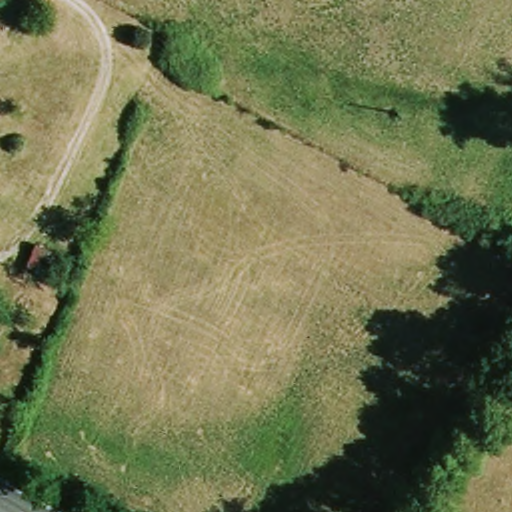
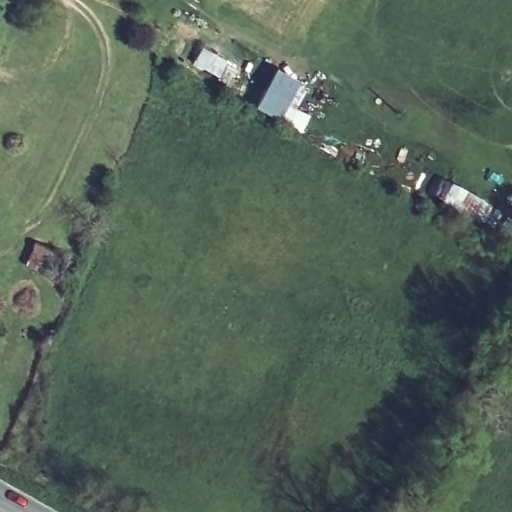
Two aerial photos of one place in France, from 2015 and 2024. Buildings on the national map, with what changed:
new [(257,109),(277,71),(300,83),(289,104),(310,115),(302,132),(257,109)]

